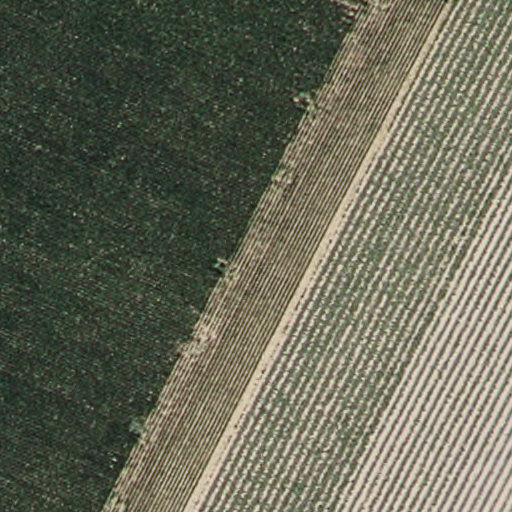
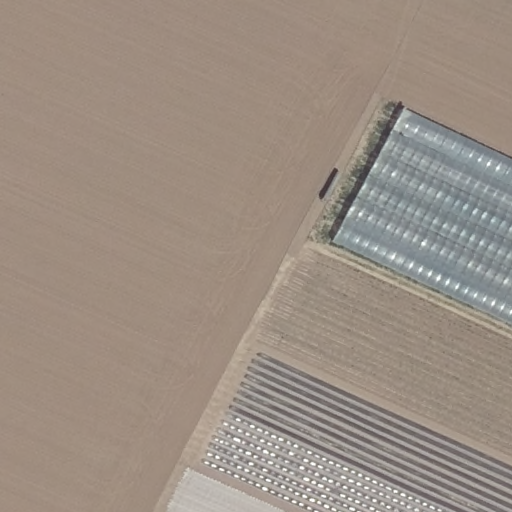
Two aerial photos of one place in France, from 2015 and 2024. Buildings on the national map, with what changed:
new [(404,110),(512,159),(512,329),(331,246),(404,110)]

